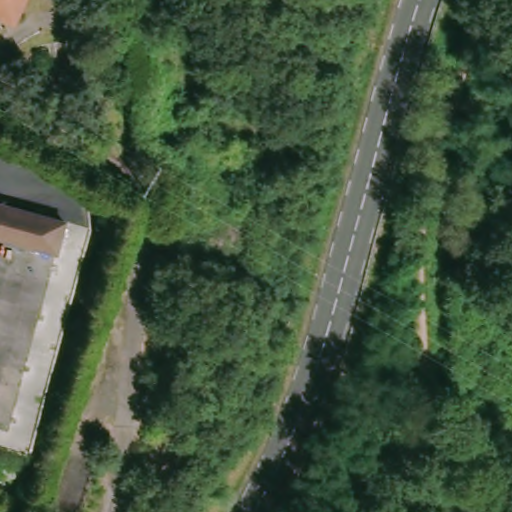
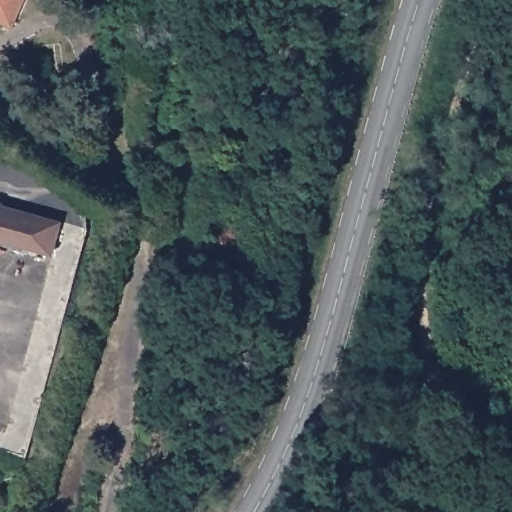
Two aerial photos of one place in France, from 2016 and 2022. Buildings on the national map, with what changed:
unchanged [(8,23),(0,19),(0,0),(17,0),(8,23)]
unchanged [(0,240),(0,200),(61,220),(57,253),(0,240)]

